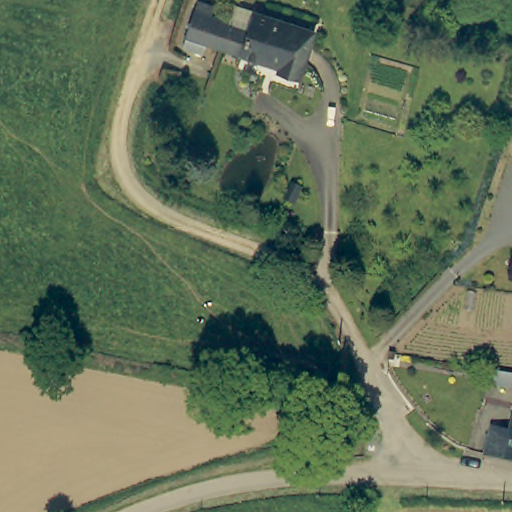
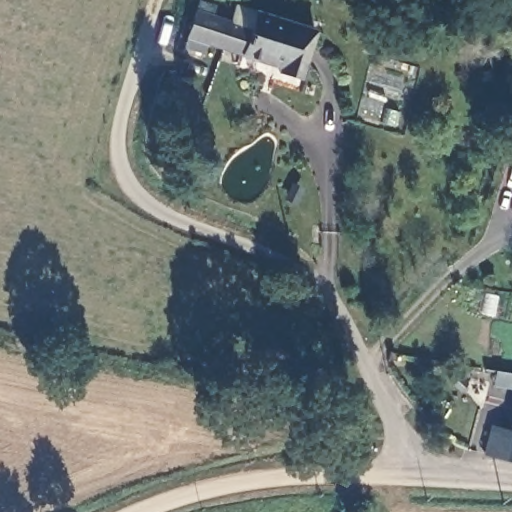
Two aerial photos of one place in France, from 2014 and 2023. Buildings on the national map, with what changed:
unchanged [(228,17),(231,5),(318,27),(306,79),(276,71),(279,62),(188,36),(194,8),(228,17)]
unchanged [(512,410),(512,438),(506,437),(512,410)]
unchanged [(485,432),(506,437),(512,438),(512,462),(479,454),(485,432)]

